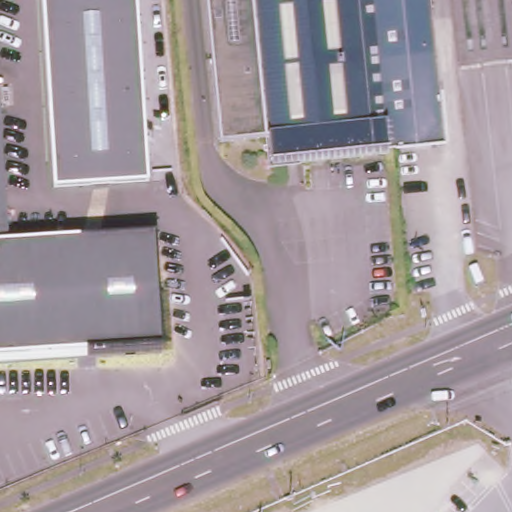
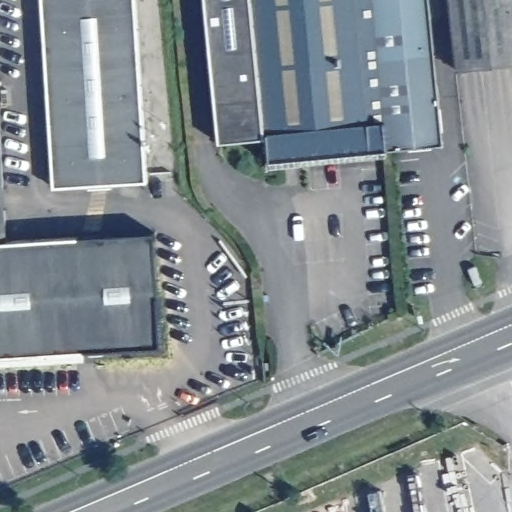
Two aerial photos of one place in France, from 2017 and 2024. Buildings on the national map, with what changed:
unchanged [(145,181),(53,188),(41,0),(135,0),(145,181)]
unchanged [(203,139),(197,0),(208,0),(220,137),(203,139)]
unchanged [(254,160),(252,135),(220,137),(208,0),(371,0),(380,150),(254,160)]
unchanged [(431,145),(380,150),(371,0),(423,0),(431,145)]
unchanged [(512,67),(451,70),(447,0),(512,0),(512,67)]
unchanged [(9,241),(0,241),(0,66),(9,241)]
unchanged [(9,241),(153,233),(160,345),(0,355),(0,241),(9,241)]

